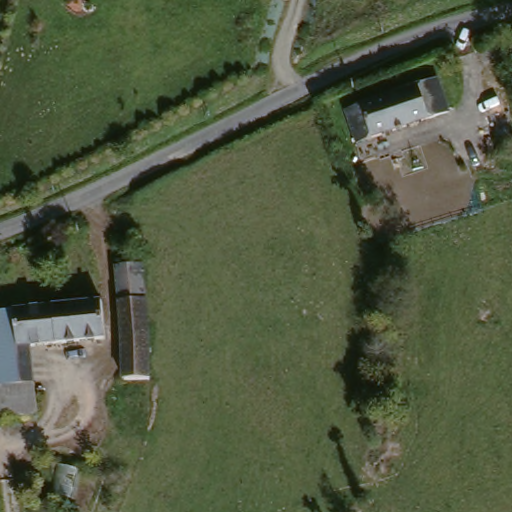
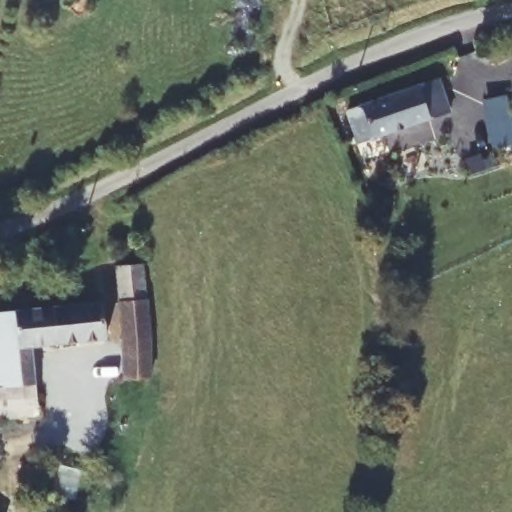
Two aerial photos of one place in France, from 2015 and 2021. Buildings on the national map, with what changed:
unchanged [(438,77),(450,110),(358,140),(347,109),(438,77)]
new [(507,94),(512,114),(512,145),(492,150),(481,101),(507,94)]
unchanged [(141,262),(146,327),(150,328),(151,372),(122,373),(115,263),(141,262)]
unchanged [(104,297),(107,332),(30,342),(21,343),(16,306),(104,297)]
unchanged [(21,343),(30,342),(34,377),(0,381),(0,308),(16,306),(21,343)]
unchanged [(37,409),(0,413),(0,381),(34,377),(37,409)]

